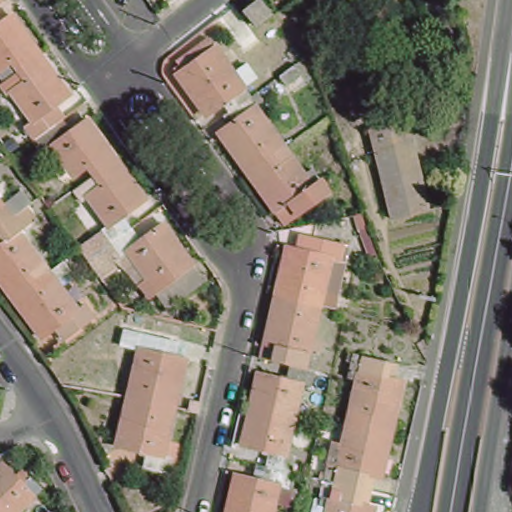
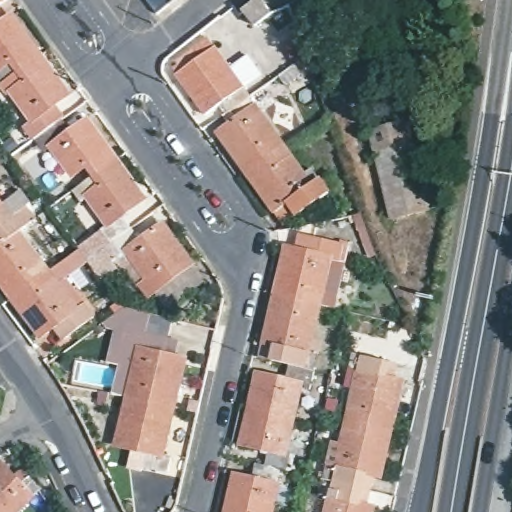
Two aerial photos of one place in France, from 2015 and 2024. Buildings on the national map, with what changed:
unchanged [(256,27),(243,11),(259,0),(271,15),(256,27)]
unchanged [(21,53),(6,63),(0,54),(0,22),(23,5),(53,45),(28,63),(21,53)]
unchanged [(240,105),(233,96),(207,114),(178,75),(183,71),(180,66),(212,44),(251,97),(240,105)]
unchanged [(44,131),(35,119),(43,114),(21,83),(35,73),(28,63),(53,45),(80,85),(58,102),(66,115),(44,131)]
unchanged [(240,105),(251,97),(286,147),(249,173),(219,132),(243,115),(237,106),(240,105)]
unchanged [(103,168),(96,158),(82,168),(59,136),(51,141),(44,131),(66,115),(74,126),(98,110),(127,150),(103,168)]
unchanged [(374,130),(414,120),(419,146),(380,156),(374,130)]
unchanged [(419,146),(434,217),(396,225),(380,156),(419,146)]
unchanged [(314,170),(331,194),(311,208),(302,197),(278,213),(249,173),(286,147),(306,175),(314,170)]
unchanged [(119,237),(110,224),(117,218),(95,188),(110,178),(103,168),(127,150),(156,191),(133,209),(141,220),(119,237)]
unchanged [(22,192),(31,206),(28,208),(0,228),(0,207),(1,208),(22,192)]
unchanged [(0,281),(0,247),(6,243),(0,235),(0,228),(28,208),(36,220),(19,233),(49,272),(13,298),(0,281)]
unchanged [(119,237),(141,220),(151,233),(173,215),(203,256),(158,288),(150,276),(158,270),(138,242),(122,253),(113,241),(119,237)]
unchanged [(273,302),(284,254),(311,260),(314,244),(339,250),(336,265),(327,264),(316,313),(273,302)]
unchanged [(85,305),(95,318),(75,333),(66,321),(43,337),(13,298),(49,272),(78,311),(85,305)]
unchanged [(262,351),(273,302),(316,313),(305,360),(314,363),(310,378),(284,372),(288,357),(262,351)]
unchanged [(155,350),(184,357),(173,406),(128,396),(139,347),(120,342),(123,327),(158,335),(155,350)]
unchanged [(369,370),(397,377),(385,426),(360,419),(363,409),(345,404),(354,367),(344,365),(347,349),(373,355),(369,370)]
unchanged [(310,378),(306,393),(297,391),(289,426),(247,416),(256,381),(281,387),(284,372),(310,378)]
unchanged [(172,454),(168,470),(144,464),(147,451),(118,443),(128,396),(173,406),(163,453),(172,454)]
unchanged [(289,426),(281,462),(291,464),(287,479),(261,473),(264,458),(238,451),(247,416),(289,426)]
unchanged [(319,476),(322,461),(331,464),(340,427),(357,431),(360,419),(385,426),(374,474),(346,467),(343,482),(319,476)]
unchanged [(233,481),(259,487),(261,473),(287,479),(284,493),(274,491),(269,512),(225,512),(233,481)]
unchanged [(324,493),(316,491),(319,476),(343,482),(339,497),(368,502),(365,512),(320,512),(324,493)]
unchanged [(23,497),(31,490),(43,502),(31,512),(0,512),(0,480),(4,477),(23,497)]

